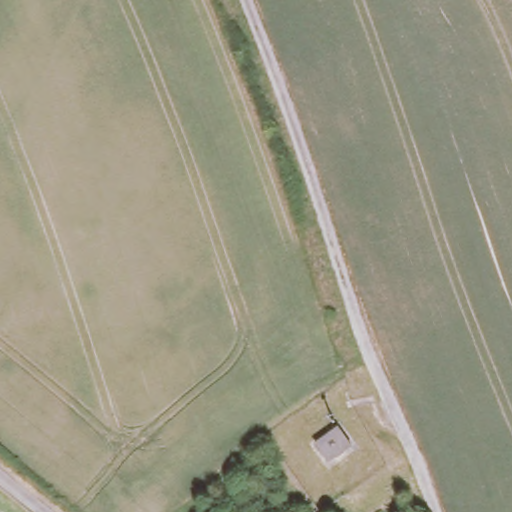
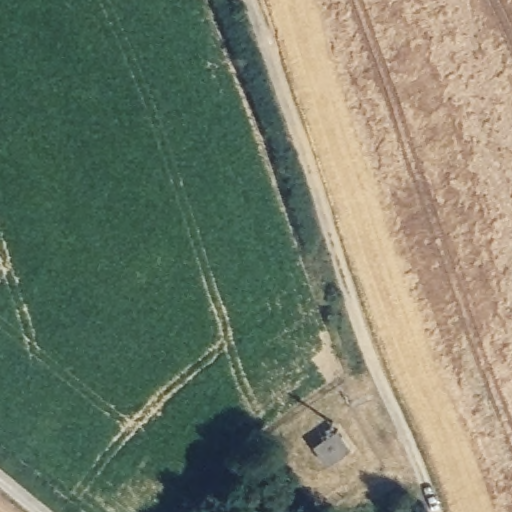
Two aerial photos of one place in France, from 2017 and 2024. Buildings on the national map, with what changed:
unchanged [(340,420),(359,448),(328,469),(309,443),(340,420)]

